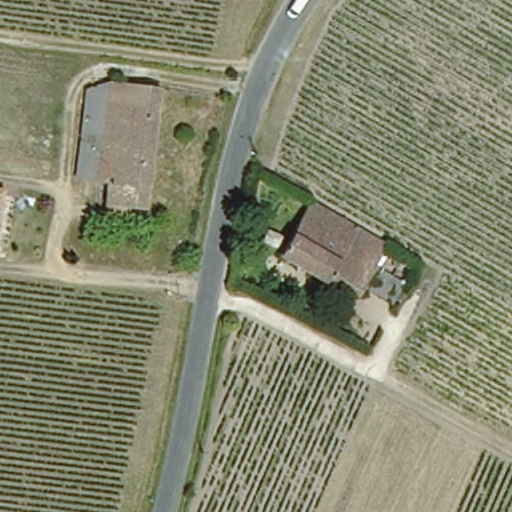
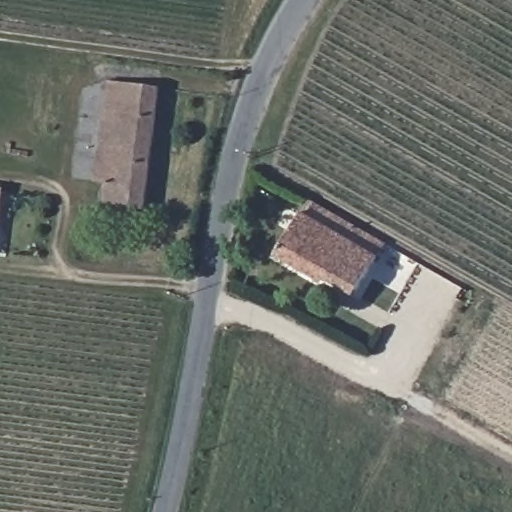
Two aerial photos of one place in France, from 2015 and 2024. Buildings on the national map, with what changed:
unchanged [(112,90),(113,78),(158,84),(142,205),(111,201),(113,181),(74,176),(77,148),(102,151),(104,132),(81,129),(86,87),(112,90)]
unchanged [(0,213),(0,187),(3,187),(0,213)]
unchanged [(330,276),(327,282),(281,256),(312,201),(383,242),(356,290),(330,276)]

